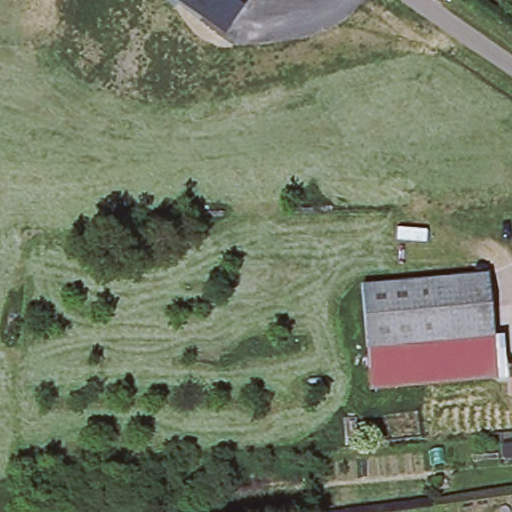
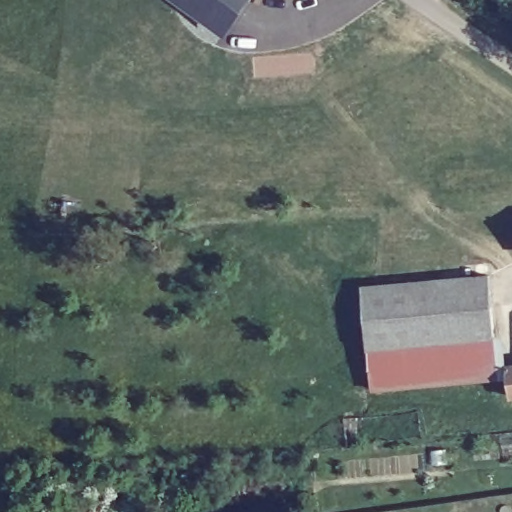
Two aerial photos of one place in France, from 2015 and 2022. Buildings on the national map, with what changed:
unchanged [(177,0),(244,0),(223,31),(177,0)]
unchanged [(360,286),(487,274),(491,318),(493,334),(490,334),(365,346),(365,334),(360,286)]
unchanged [(490,334),(493,376),(368,388),(365,346),(490,334)]
unchanged [(505,364),(512,364),(512,394),(508,394),(505,364)]

